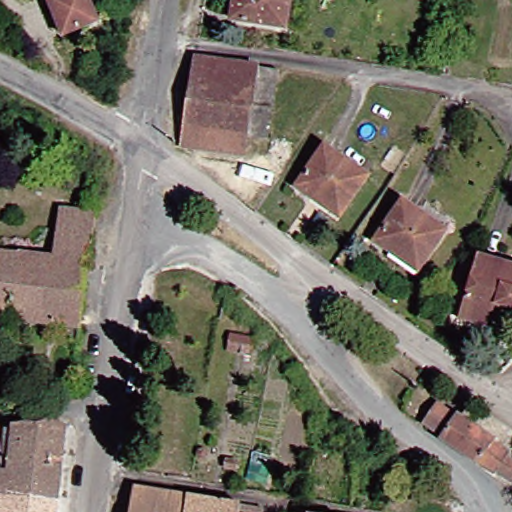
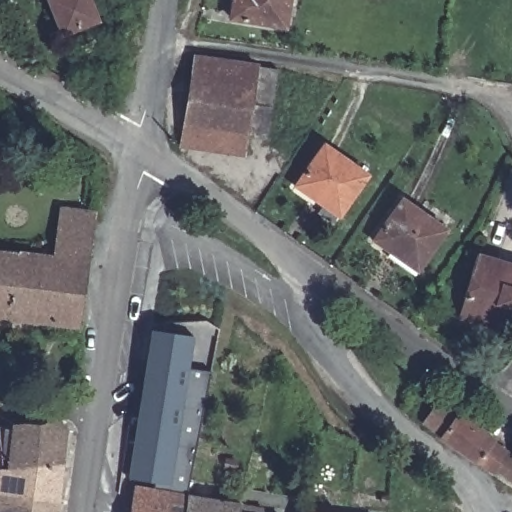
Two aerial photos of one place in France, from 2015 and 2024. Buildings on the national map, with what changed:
unchanged [(43,34),(36,0),(76,0),(80,27),(43,34)]
unchanged [(276,25),(222,16),(223,0),(279,0),(276,25)]
unchanged [(181,56),(246,65),(244,81),(263,85),(254,141),(234,138),(231,158),(167,148),(181,56)]
unchanged [(358,181),(329,222),(286,191),(315,150),(358,181)]
unchanged [(437,237),(407,278),(363,246),(392,206),(437,237)]
unchanged [(0,254),(45,259),(50,209),(88,213),(69,328),(0,320),(0,254)]
unchanged [(491,321),(485,340),(445,329),(465,266),(512,278),(512,301),(506,325),(491,321)]
new [(188,488),(128,477),(151,331),(195,338),(190,371),(209,374),(188,488)]
demolished [(255,358),(227,354),(230,338),(256,342),(255,355),(255,358)]
unchanged [(430,403),(497,451),(494,454),(512,468),(512,469),(504,483),(484,468),(481,473),(415,423),(430,403)]
unchanged [(66,425),(63,459),(1,466),(0,440),(0,423),(59,417),(66,425)]
unchanged [(63,459),(58,498),(0,490),(0,440),(1,466),(63,459)]
unchanged [(122,512),(126,489),(181,498),(178,512),(122,512)]
unchanged [(56,512),(0,512),(0,490),(58,498),(56,512)]
unchanged [(178,512),(181,498),(233,506),(232,512),(178,512)]
unchanged [(254,509),(253,512),(232,512),(233,506),(254,509)]

